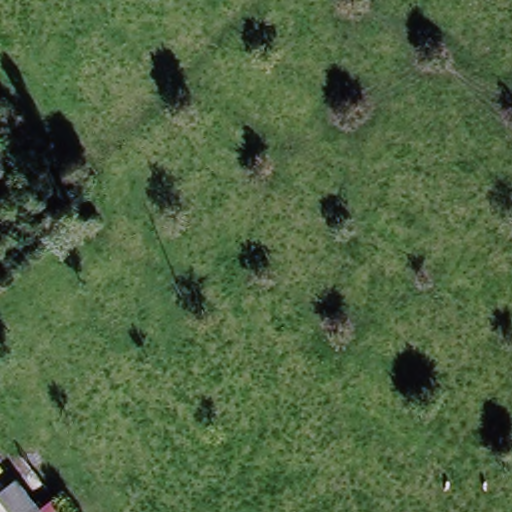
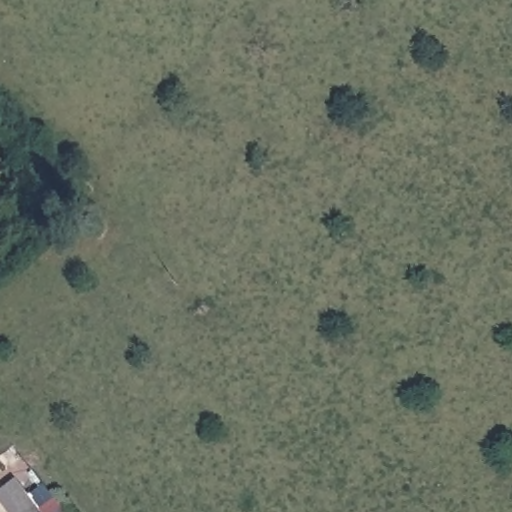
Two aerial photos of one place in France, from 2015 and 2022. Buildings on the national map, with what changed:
unchanged [(15,473),(44,512),(13,512),(0,495),(0,484),(15,473)]

